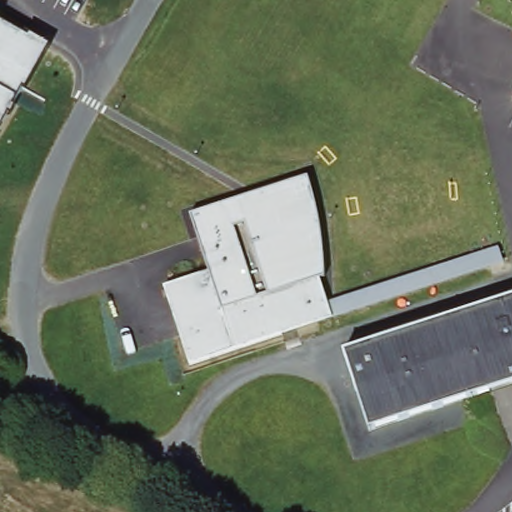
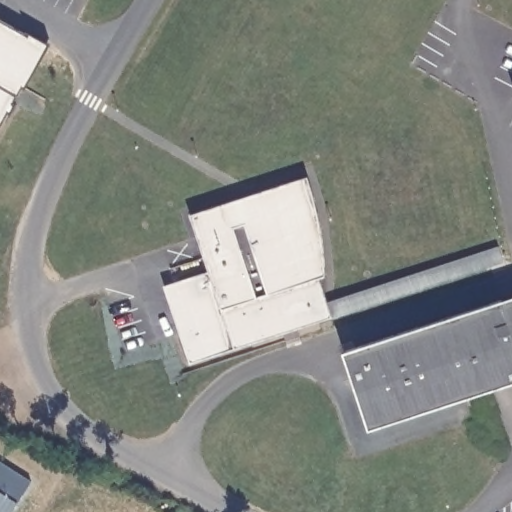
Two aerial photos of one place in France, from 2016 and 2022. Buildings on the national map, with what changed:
unchanged [(30,36),(31,34),(50,44),(26,89),(22,87),(0,126),(0,20),(30,36)]
unchanged [(164,286),(208,272),(191,215),(306,178),(313,204),(319,233),(321,260),(323,277),(319,279),(326,302),(500,248),(504,264),(331,319),(190,364),(164,286)]
unchanged [(512,382),(367,426),(344,353),(512,300),(512,382)]
new [(11,512),(0,512),(0,462),(0,461),(31,482),(11,512)]

